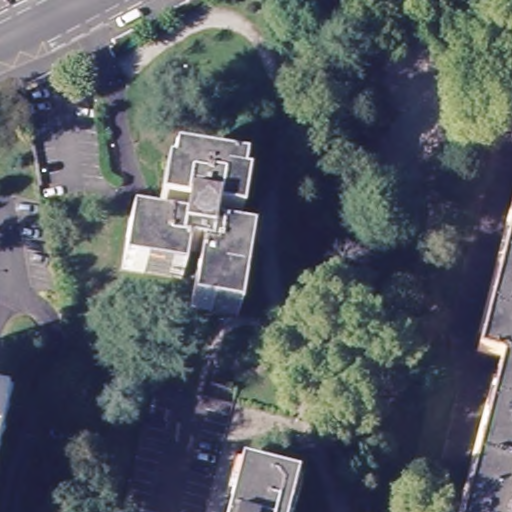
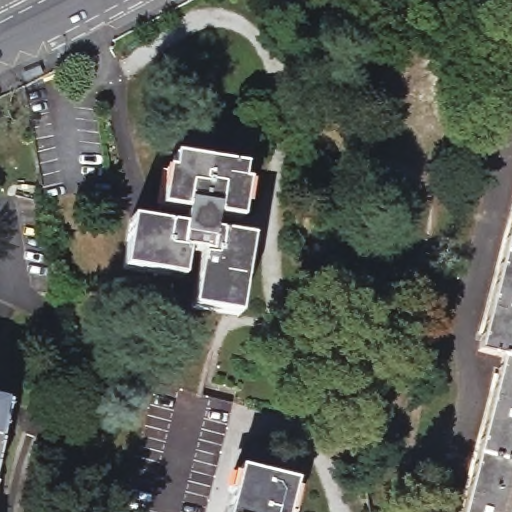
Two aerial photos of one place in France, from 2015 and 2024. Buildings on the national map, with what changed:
unchanged [(248,170),(237,237),(252,240),(241,317),(194,308),(202,258),(190,256),(185,283),(123,271),(132,221),(165,227),(177,157),(248,170)]
unchanged [(511,512),(463,512),(502,357),(477,351),(512,217),(512,510),(511,512)]
unchanged [(0,414),(0,402),(2,402),(0,414)]
unchanged [(288,512),(228,512),(238,470),(295,481),(288,512)]

